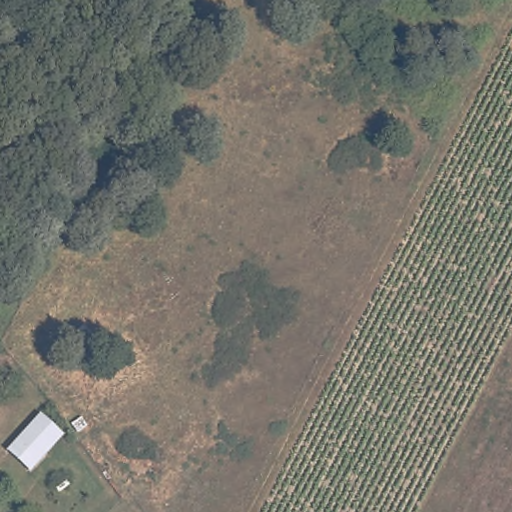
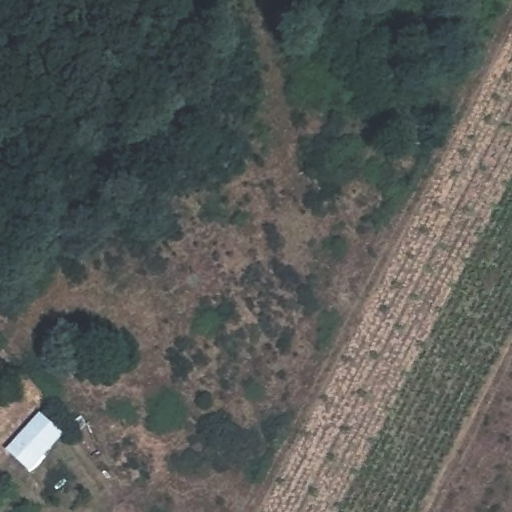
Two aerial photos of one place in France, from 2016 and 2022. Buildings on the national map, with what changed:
unchanged [(13,443),(42,410),(69,433),(33,473),(7,450),(13,443)]

